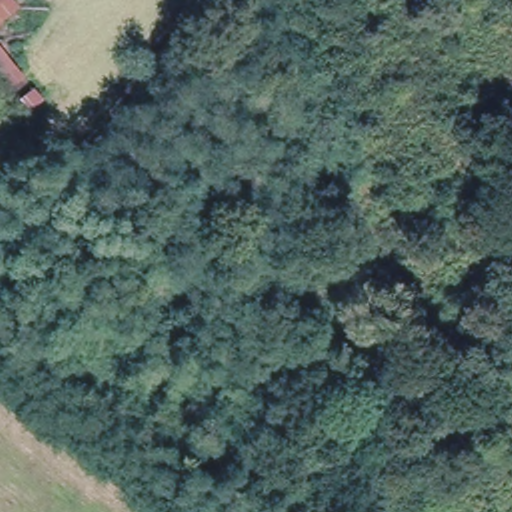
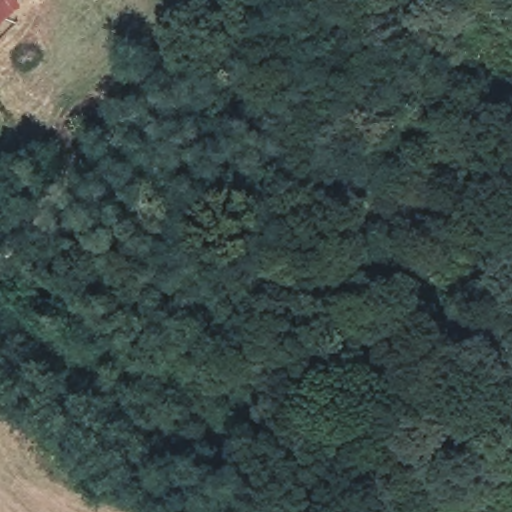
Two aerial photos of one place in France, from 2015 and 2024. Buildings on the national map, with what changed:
unchanged [(0,22),(0,0),(21,0),(0,22)]
unchanged [(0,46),(40,96),(21,113),(0,87),(0,46)]

